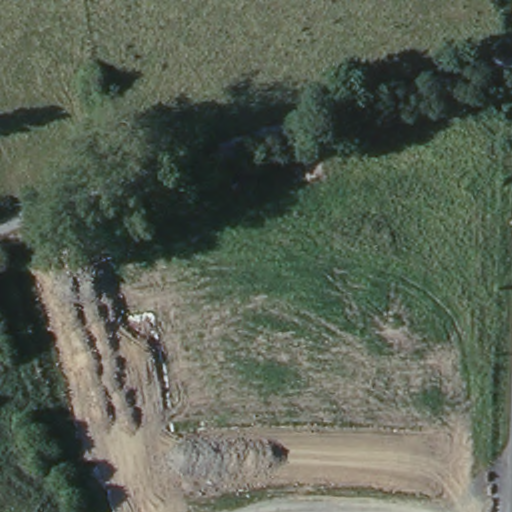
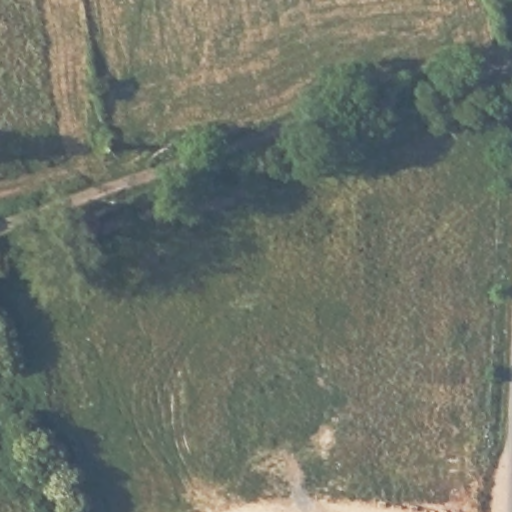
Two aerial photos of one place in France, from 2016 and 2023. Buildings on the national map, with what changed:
[]

